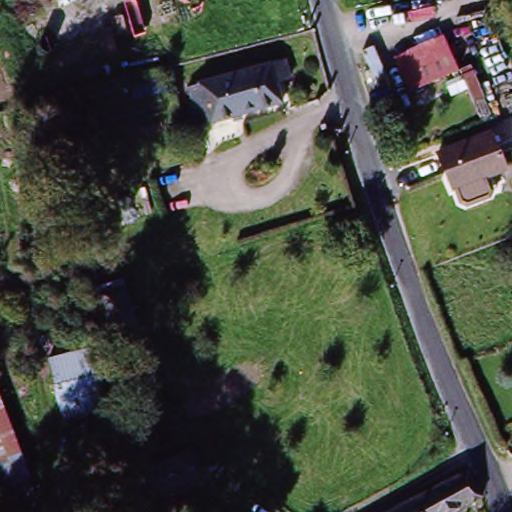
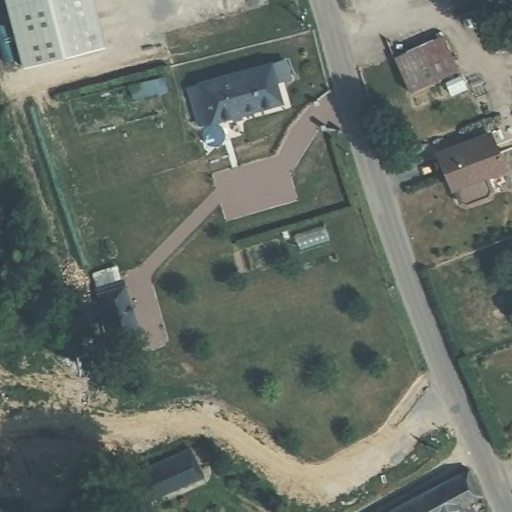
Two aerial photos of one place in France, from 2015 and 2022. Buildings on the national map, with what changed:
new [(23,67),(6,0),(92,0),(103,47),(23,67)]
unchanged [(459,72),(411,93),(396,57),(443,36),(459,72)]
unchanged [(268,83),(273,103),(190,126),(179,88),(276,62),(280,79),(268,83)]
new [(164,91),(131,99),(127,84),(160,76),(164,91)]
unchanged [(504,171),(451,190),(437,155),(491,135),(504,171)]
unchanged [(134,331),(109,339),(95,295),(120,287),(134,331)]
unchanged [(99,374),(104,373),(111,408),(62,420),(47,358),(92,347),(99,374)]
unchanged [(31,478),(36,490),(11,499),(0,472),(0,392),(34,477),(31,478)]
unchanged [(117,484),(132,474),(196,446),(208,471),(146,501),(137,509),(117,484)]
unchanged [(465,470),(478,497),(452,512),(416,512),(411,500),(465,470)]
unchanged [(137,512),(122,512),(107,495),(116,488),(137,512)]
unchanged [(411,500),(416,512),(387,512),(411,500)]

